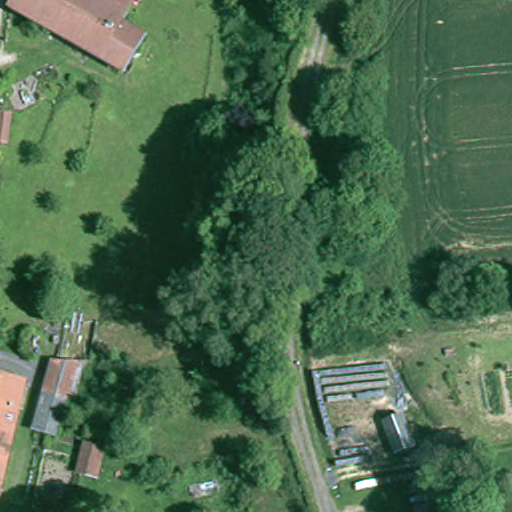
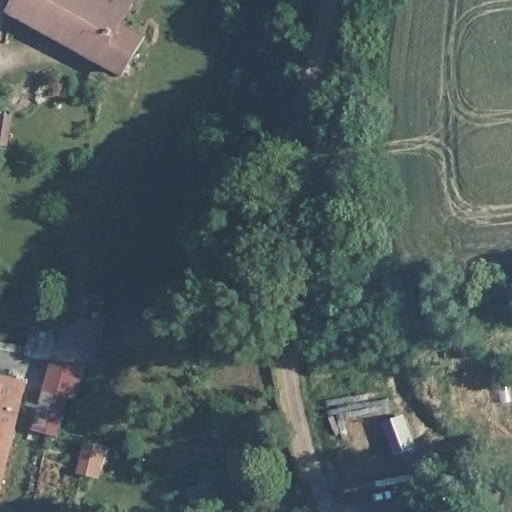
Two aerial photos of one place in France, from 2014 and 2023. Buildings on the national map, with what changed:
unchanged [(10,11),(16,0),(130,0),(117,24),(140,36),(128,60),(122,72),(10,11)]
unchanged [(51,362),(72,360),(61,434),(37,427),(51,362)]
unchanged [(22,382),(0,469),(0,377),(22,382)]

